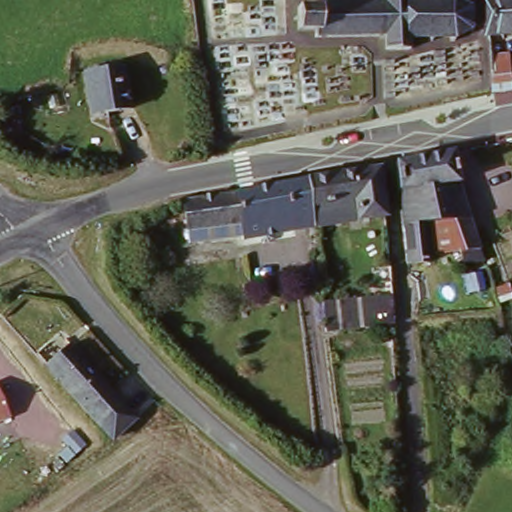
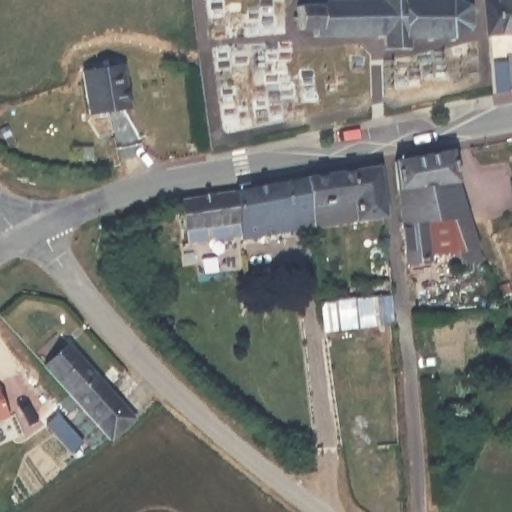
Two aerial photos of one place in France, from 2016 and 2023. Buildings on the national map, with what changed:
unchanged [(317,13),(315,5),(385,3),(385,0),(408,0),(408,6),(432,2),(431,0),(454,0),(454,5),(466,8),(472,6),(474,10),(471,15),(472,27),(476,29),(474,35),(467,34),(456,44),(455,48),(450,49),(447,45),(431,45),(432,50),(428,50),(427,46),(409,48),(410,56),(387,57),(386,41),(317,41),(316,31),(301,33),(300,15),(317,13)]
unchanged [(487,2),(512,0),(512,36),(490,37),(487,2)]
unchanged [(492,57),(512,53),(512,90),(495,93),(492,57)]
unchanged [(123,73),(130,117),(87,121),(82,81),(123,73)]
unchanged [(405,269),(402,248),(400,232),(393,164),(448,153),(455,184),(462,203),(476,252),(440,256),(436,228),(425,229),(427,265),(405,269)]
unchanged [(340,181),(381,173),(387,225),(312,236),(304,188),(340,181)]
unchanged [(312,236),(243,249),(240,232),(188,240),(180,208),(222,203),(304,188),(312,236)]
unchanged [(372,290),(372,279),(392,274),(393,288),(372,290)]
unchanged [(320,312),(357,304),(357,291),(372,290),(377,302),(394,300),(397,326),(322,337),(320,312)]
unchanged [(44,368),(67,348),(132,419),(107,438),(44,368)]
unchanged [(0,393),(11,418),(0,422),(0,393)]

